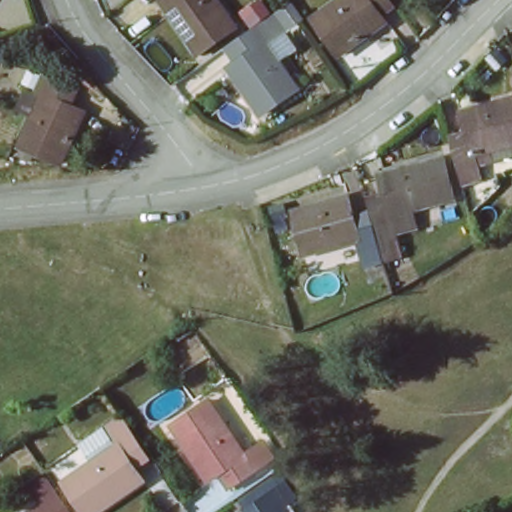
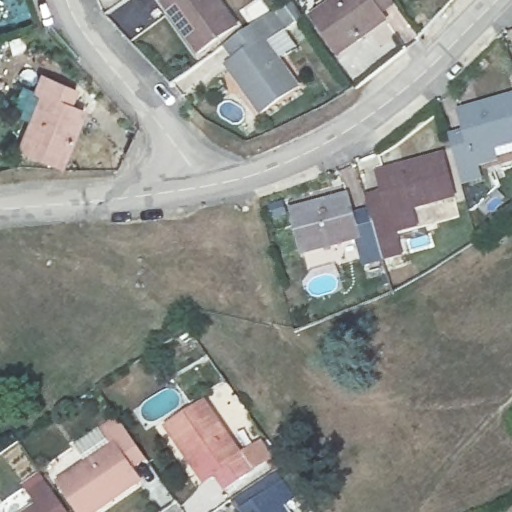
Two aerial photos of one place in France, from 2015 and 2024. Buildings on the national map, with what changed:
unchanged [(163,0),(221,0),(238,25),(200,52),(163,0)]
unchanged [(314,22),(346,0),(386,0),(389,5),(376,13),(387,29),(341,60),(314,22)]
unchanged [(259,115),(226,67),(242,57),(234,45),(268,21),(277,32),(264,42),(297,89),(259,115)]
unchanged [(57,165),(15,148),(36,97),(23,90),(28,77),(67,92),(62,107),(79,114),(57,165)]
unchanged [(466,184),(454,145),(471,140),(466,121),(512,109),(512,155),(478,164),(483,181),(466,184)]
unchanged [(381,236),(370,195),(385,191),(379,170),(443,152),(456,196),(392,215),(397,232),(381,236)]
unchanged [(375,248),(360,254),(358,242),(305,257),(291,207),(344,194),(349,214),(365,210),(375,248)]
unchanged [(264,459),(232,482),(221,468),(204,480),(166,425),(203,399),(242,454),(256,445),(264,459)]
unchanged [(99,512),(76,512),(59,485),(86,467),(75,449),(102,430),(104,435),(116,426),(141,460),(128,467),(140,485),(99,512)]
unchanged [(41,506),(31,492),(44,484),(65,512),(33,512),(41,506)]
unchanged [(249,511),(281,488),(291,500),(279,510),(280,512),(250,512),(249,511)]

